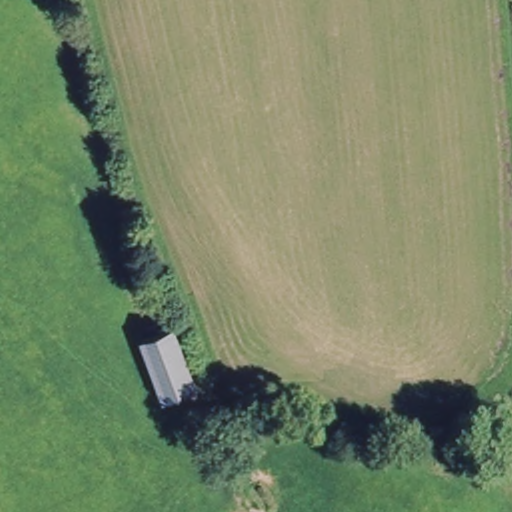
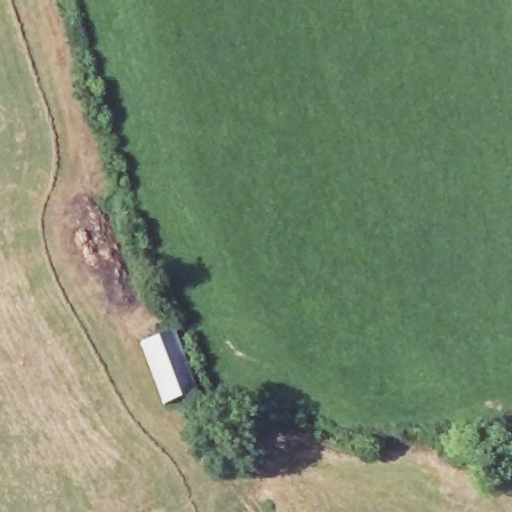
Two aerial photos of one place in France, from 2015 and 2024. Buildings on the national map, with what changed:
unchanged [(192,390),(160,401),(138,337),(171,326),(192,390)]

